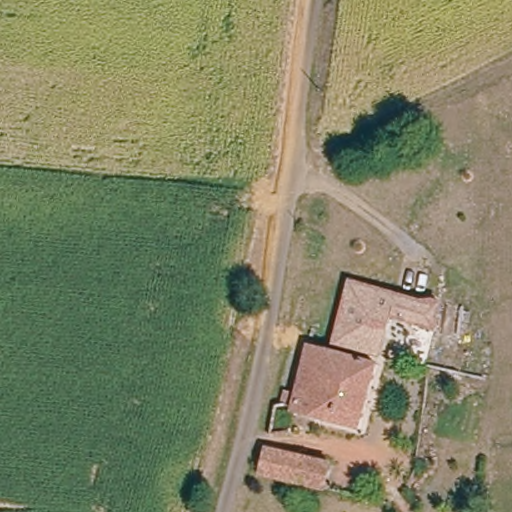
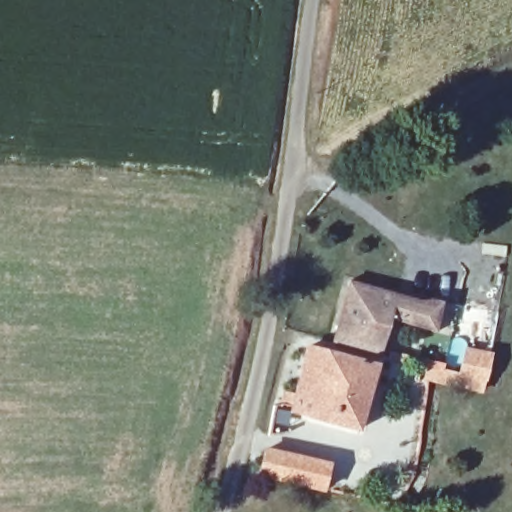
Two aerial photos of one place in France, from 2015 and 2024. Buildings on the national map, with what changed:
unchanged [(435,301),(431,327),(383,317),(373,352),(329,341),(342,279),(435,301)]
new [(483,395),(422,379),(426,363),(457,371),(462,346),(493,352),(483,395)]
unchanged [(353,423),(291,413),(290,412),(294,390),(303,347),(367,358),(353,423)]
unchanged [(332,462),(326,487),(260,473),(266,451),(332,462)]

